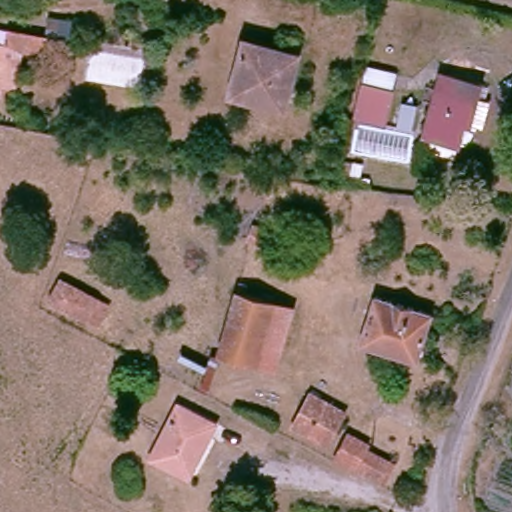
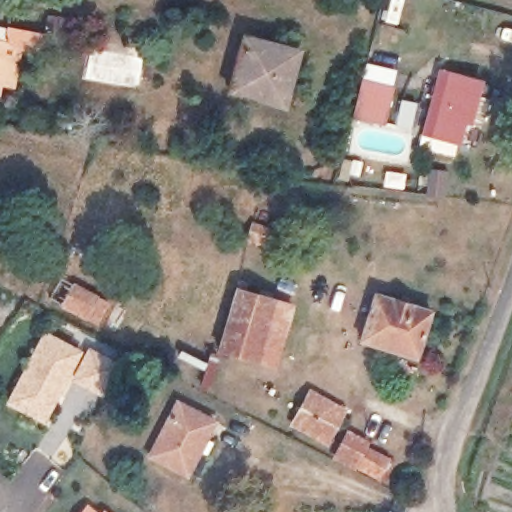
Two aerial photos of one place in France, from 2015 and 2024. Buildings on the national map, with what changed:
unchanged [(44,12),(72,18),(67,54),(37,53),(44,12)]
unchanged [(33,48),(14,49),(14,88),(0,88),(0,32),(33,32),(33,48)]
unchanged [(279,106),(230,92),(242,48),(246,38),(272,47),(295,54),(279,106)]
unchanged [(382,82),(393,84),(389,96),(414,101),(407,128),(384,125),(351,117),(359,78),(362,60),(385,67),(382,82)]
unchanged [(477,120),(466,116),(461,116),(452,147),(422,138),(440,66),(476,76),(472,98),(483,102),(477,120)]
unchanged [(272,232),(268,250),(243,244),(248,225),(272,232)]
unchanged [(92,297),(83,315),(52,300),(62,281),(92,297)]
unchanged [(232,288),(272,301),(259,359),(216,347),(232,288)]
unchanged [(429,314),(412,356),(357,335),(373,291),(429,314)]
unchanged [(291,308),(278,364),(259,359),(272,301),(291,308)]
new [(46,332),(84,352),(45,424),(7,405),(46,332)]
unchanged [(339,411),(322,442),(288,424),(304,393),(339,411)]
unchanged [(144,457),(173,404),(179,407),(214,426),(196,460),(188,459),(179,475),(154,463),(144,457)]
unchanged [(336,462),(336,459),(348,437),(378,453),(365,478),(336,462)]
new [(97,512),(82,512),(88,505),(97,512)]
new [(105,512),(104,512),(105,511),(105,512)]

